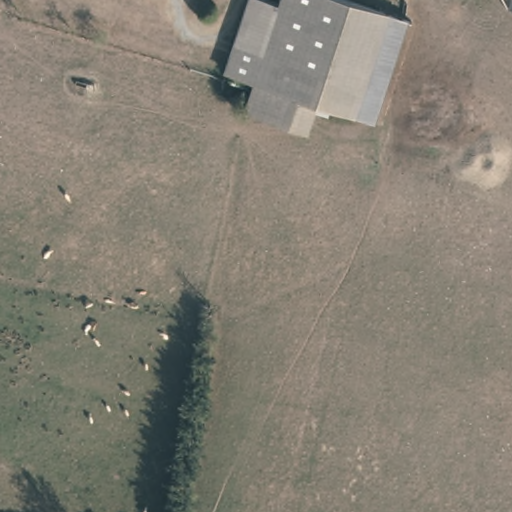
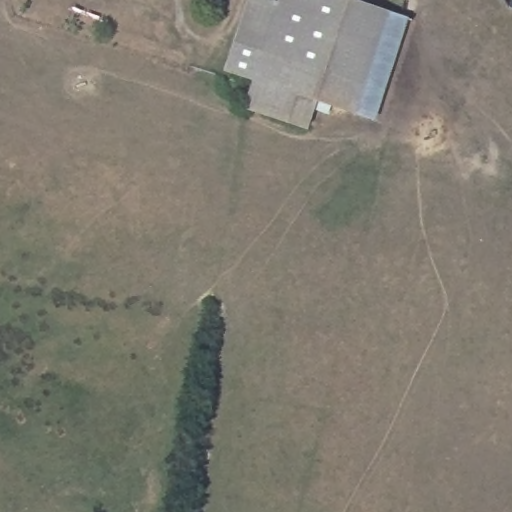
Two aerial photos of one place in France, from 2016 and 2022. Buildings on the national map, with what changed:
unchanged [(407,15),(368,117),(349,110),(339,140),(254,106),(241,101),(252,72),(226,62),(248,0),(367,0),(407,15)]

